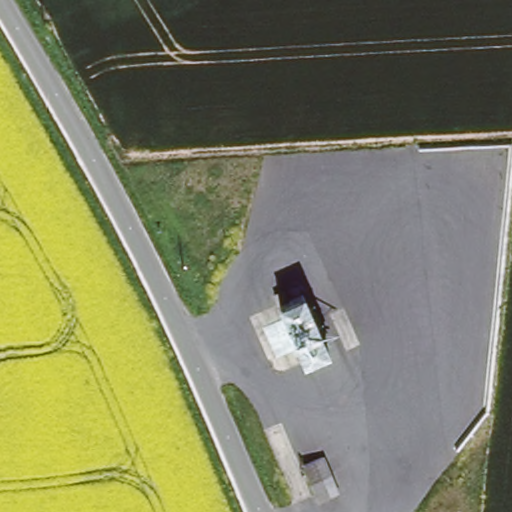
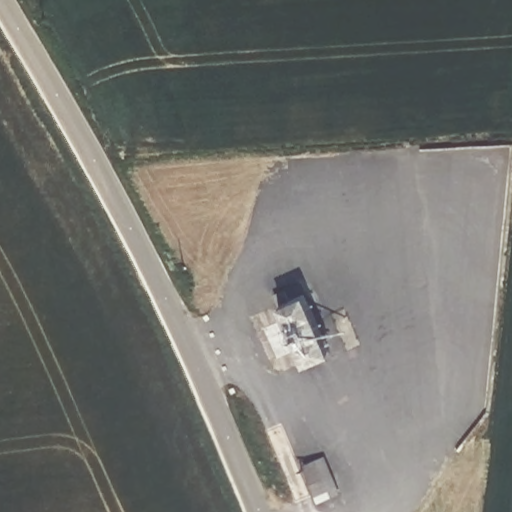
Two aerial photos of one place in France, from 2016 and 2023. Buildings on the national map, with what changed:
unchanged [(303,293),(329,352),(304,363),(278,304),(303,293)]
unchanged [(318,456),(332,489),(315,497),(300,463),(318,456)]

